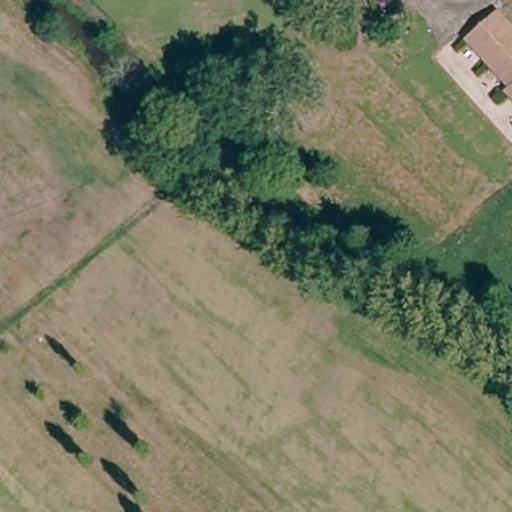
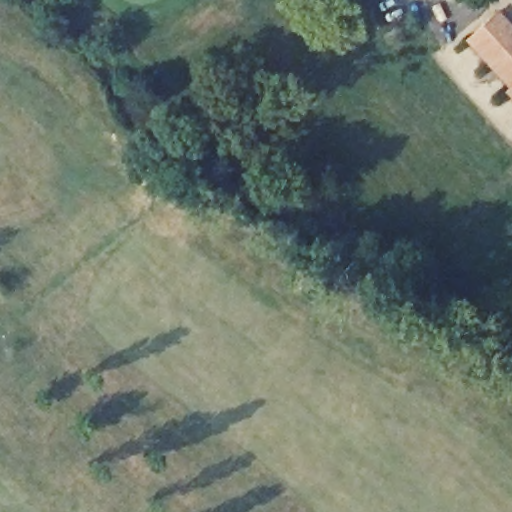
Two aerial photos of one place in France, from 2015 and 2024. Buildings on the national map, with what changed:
unchanged [(492,21),(501,14),(512,28),(512,77),(476,37),(492,21)]

